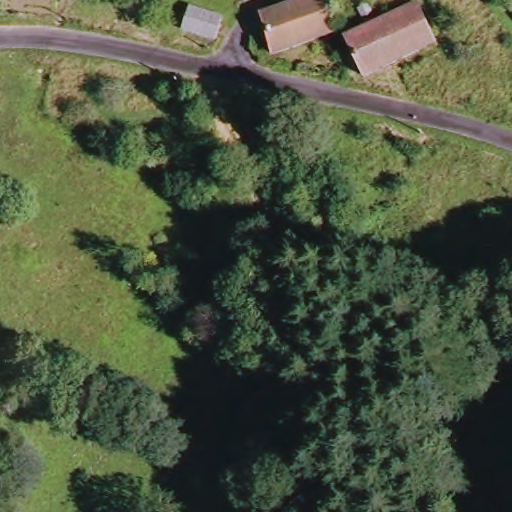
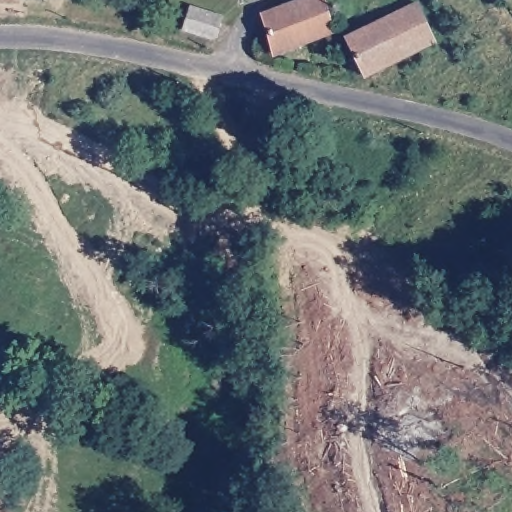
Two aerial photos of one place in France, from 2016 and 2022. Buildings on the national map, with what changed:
unchanged [(330,0),(331,1),(336,21),(339,34),(280,59),(271,35),(269,17),(317,0),(330,0)]
unchanged [(436,44),(362,75),(358,65),(349,69),(346,58),(351,56),(345,39),(368,30),(380,25),(420,8),(436,44)]
unchanged [(182,35),(188,12),(220,22),(211,42),(182,35)]

